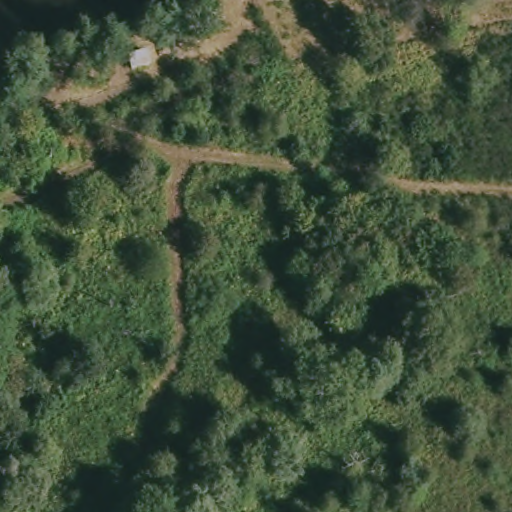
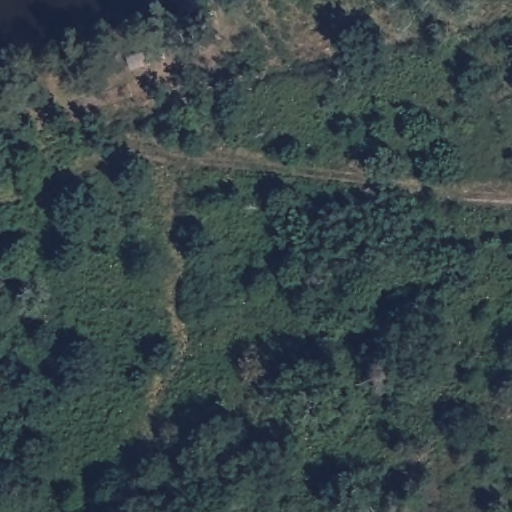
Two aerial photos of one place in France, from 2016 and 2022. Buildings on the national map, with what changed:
unchanged [(122,49),(138,48),(141,65),(126,69),(122,49)]

